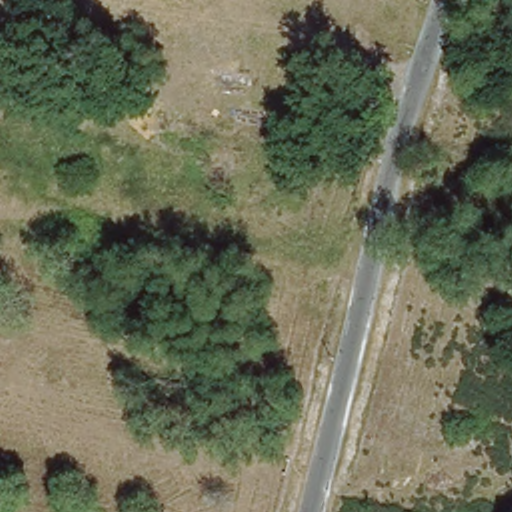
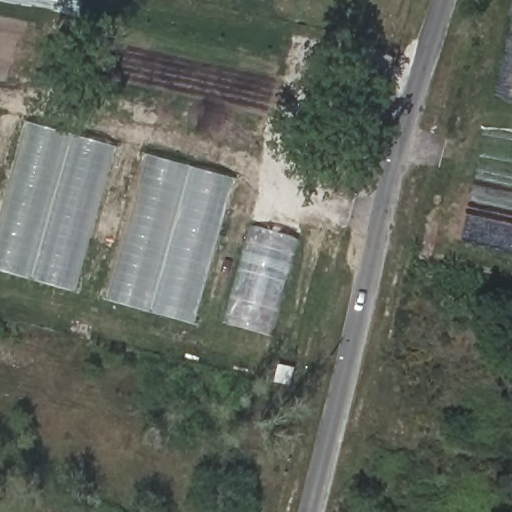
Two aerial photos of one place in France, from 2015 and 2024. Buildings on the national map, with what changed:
new [(0,270),(0,230),(27,125),(65,135),(27,277),(0,270)]
new [(75,137),(114,147),(73,291),(36,280),(75,137)]
new [(142,153),(232,178),(192,322),(103,299),(142,153)]
new [(271,335),(226,323),(250,228),(295,239),(271,335)]

